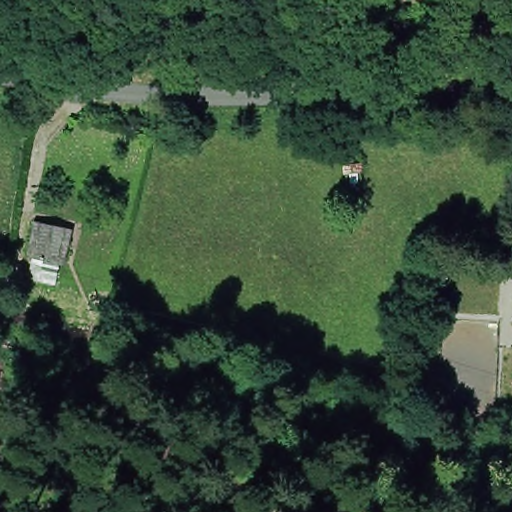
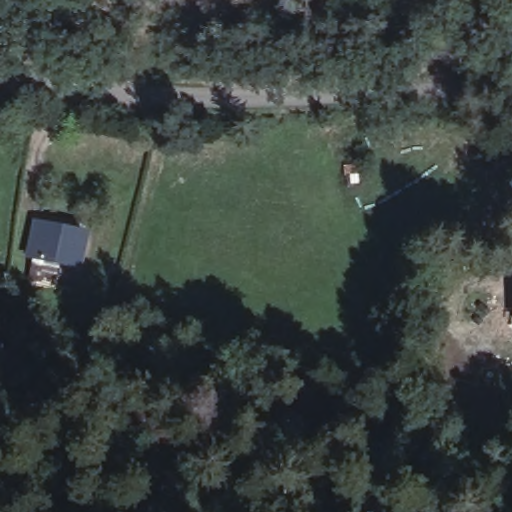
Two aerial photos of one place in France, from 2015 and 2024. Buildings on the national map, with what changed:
unchanged [(361,165),(366,191),(344,193),(342,168),(361,165)]
unchanged [(27,269),(30,251),(26,250),(33,218),(50,220),(48,233),(75,237),(69,259),(62,257),(58,274),(27,269)]

